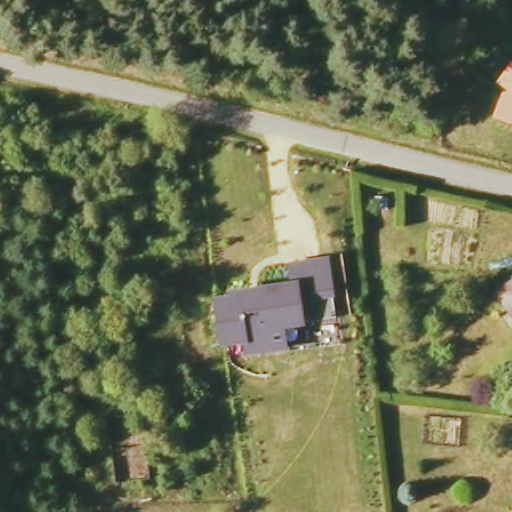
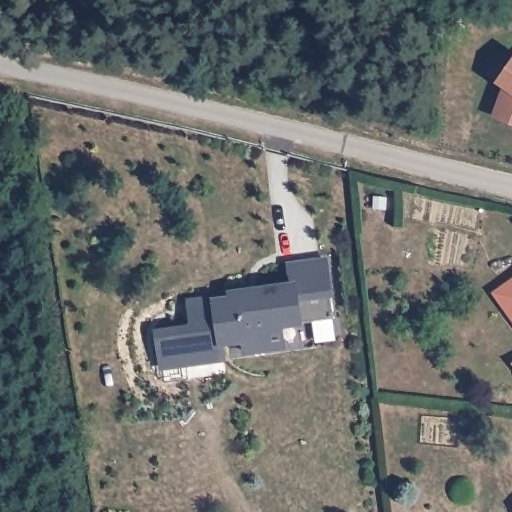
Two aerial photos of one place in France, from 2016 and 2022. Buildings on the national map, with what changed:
unchanged [(500,90),(494,86),(512,60),(512,129),(492,123),(500,90)]
unchanged [(285,264),(328,258),(335,296),(337,317),(304,322),(283,327),(286,349),(246,355),(243,342),(221,345),(214,300),(229,297),(228,289),(290,282),(285,264)]
unchanged [(512,291),(512,307),(506,296),(512,291)]
new [(154,328),(191,323),(188,298),(214,296),(214,300),(221,345),(226,345),(228,361),(161,372),(154,328)]

